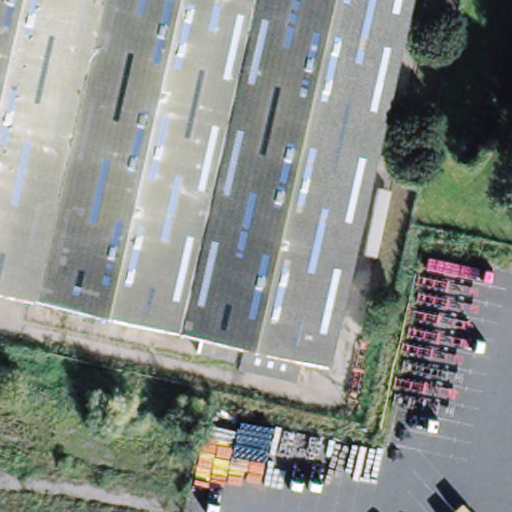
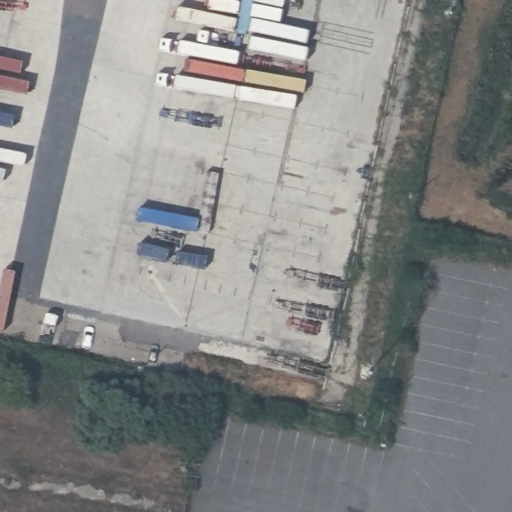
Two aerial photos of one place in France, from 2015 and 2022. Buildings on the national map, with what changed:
demolished [(99,0),(34,295),(0,287),(0,0),(99,0)]
demolished [(99,0),(410,0),(328,361),(304,355),(204,333),(34,295),(99,0)]
demolished [(304,355),(301,372),(200,349),(204,333),(304,355)]

